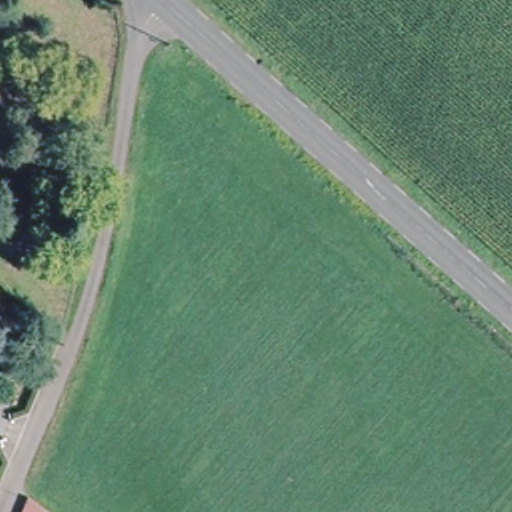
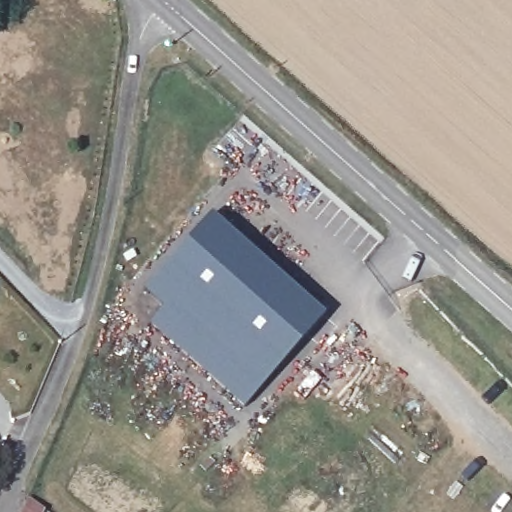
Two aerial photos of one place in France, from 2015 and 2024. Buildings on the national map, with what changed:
new [(211,215),(278,274),(265,290),(311,330),(246,407),(150,323),(163,308),(144,292),(211,215)]
new [(0,230),(0,220),(5,226),(0,230)]
new [(278,274),(325,315),(311,330),(265,290),(278,274)]
unchanged [(22,512),(28,498),(45,511),(44,512),(22,512)]

